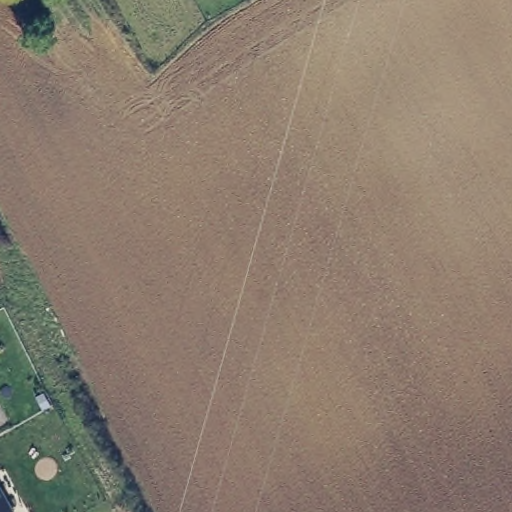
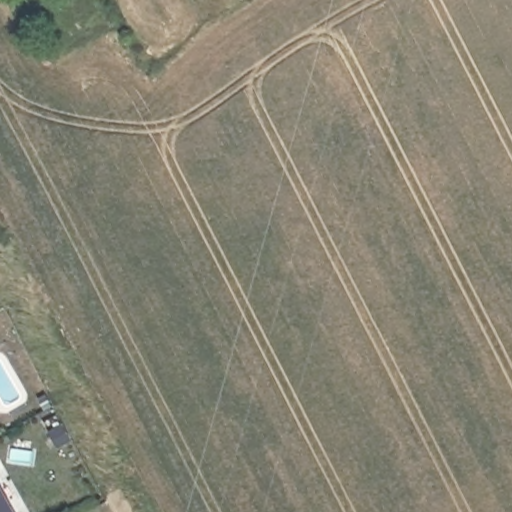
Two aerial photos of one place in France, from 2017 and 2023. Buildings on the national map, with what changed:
unchanged [(15,512),(0,512),(0,485),(15,512)]

